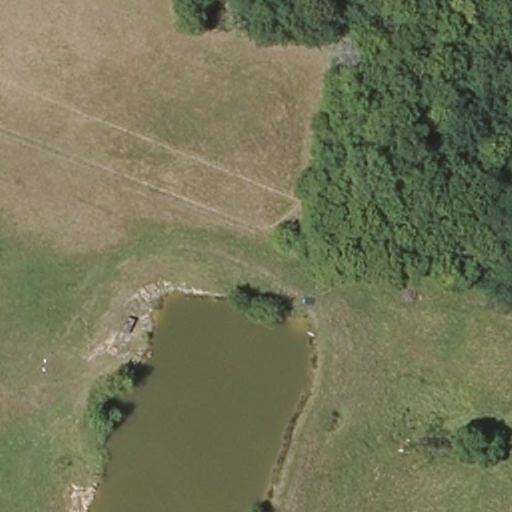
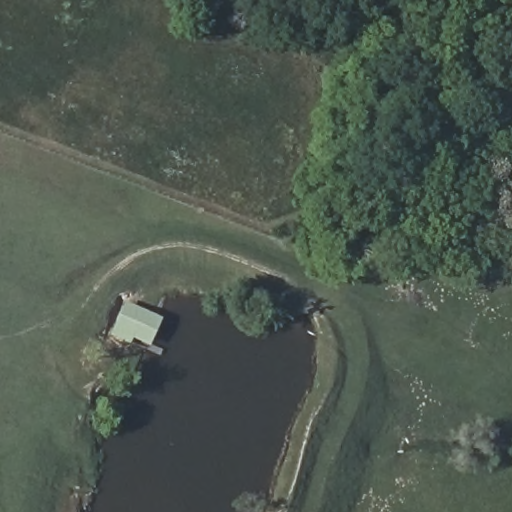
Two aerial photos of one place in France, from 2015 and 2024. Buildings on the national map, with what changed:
new [(134,340),(132,345),(111,336),(126,302),(164,318),(152,347),(134,340)]

